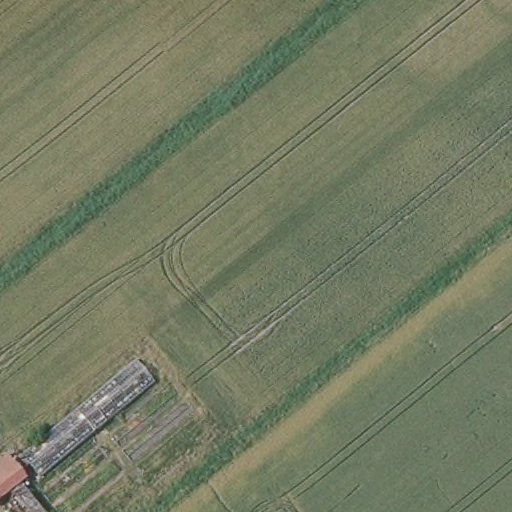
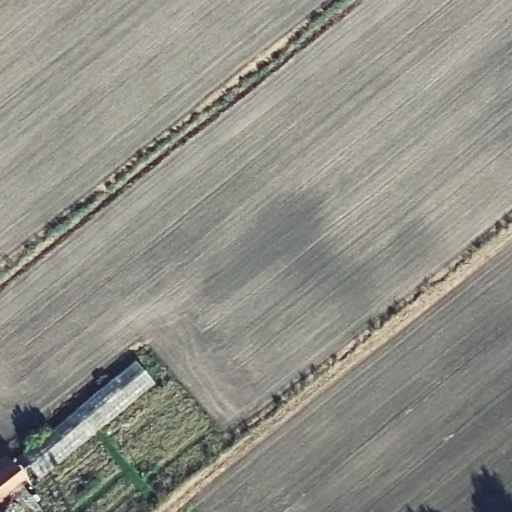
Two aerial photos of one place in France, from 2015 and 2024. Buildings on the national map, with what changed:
unchanged [(140,366),(160,389),(87,445),(71,423),(69,421),(140,366)]
unchanged [(11,500),(0,508),(0,464),(3,462),(8,468),(69,421),(71,423),(87,445),(54,471),(40,482),(36,486),(27,477),(19,484),(22,496),(35,512),(20,512),(11,500)]

